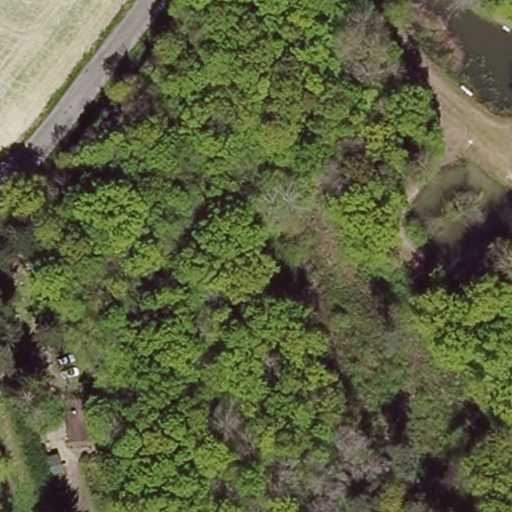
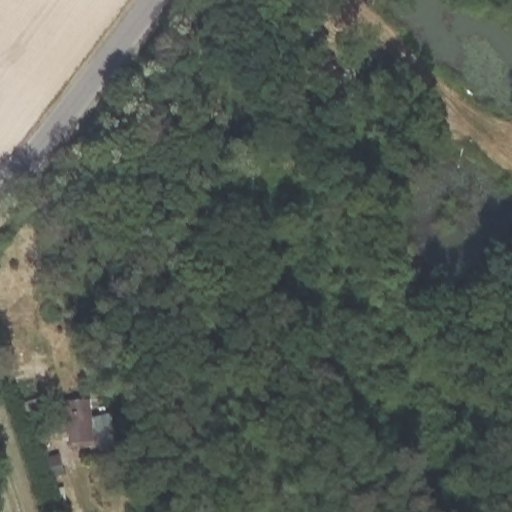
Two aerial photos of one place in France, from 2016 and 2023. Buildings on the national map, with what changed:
unchanged [(346,35),(316,63),(303,48),(327,23),(346,35)]
unchanged [(67,400),(89,400),(90,432),(68,433),(67,400)]
unchanged [(114,429),(103,433),(96,416),(108,412),(114,429)]

